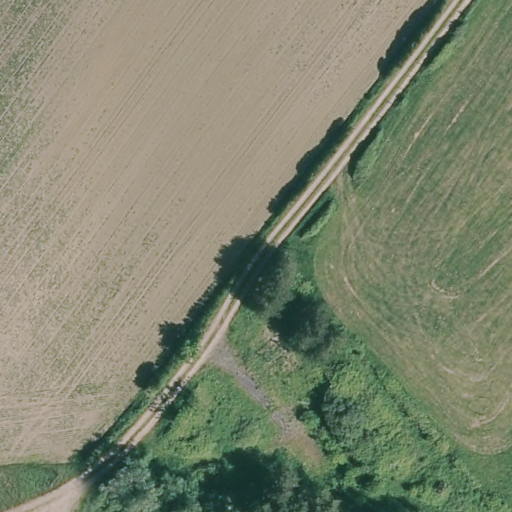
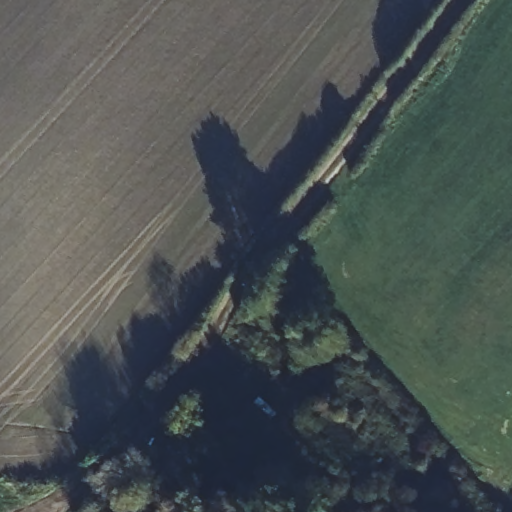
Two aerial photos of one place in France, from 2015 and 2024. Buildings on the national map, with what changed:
unchanged [(374,451),(345,470),(278,402),(307,373),(374,451)]

